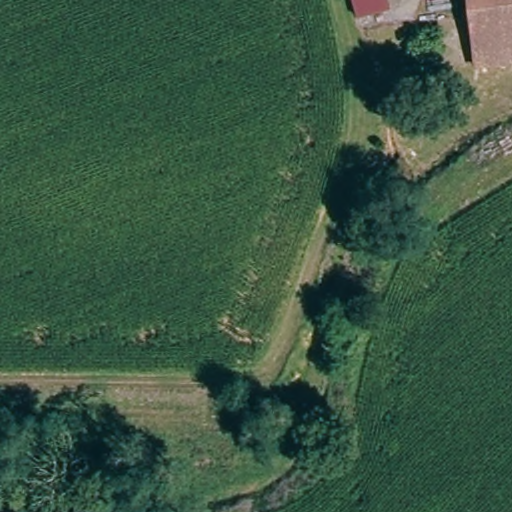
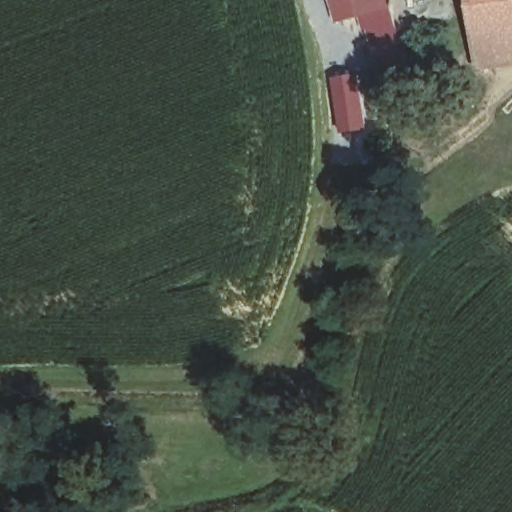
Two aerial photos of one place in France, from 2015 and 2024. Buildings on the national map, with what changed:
unchanged [(384,8),(351,18),(346,0),(381,0),(384,8)]
unchanged [(479,41),(473,0),(512,0),(512,50),(480,55),(479,41)]
new [(368,131),(340,135),(333,84),(360,80),(368,131)]

